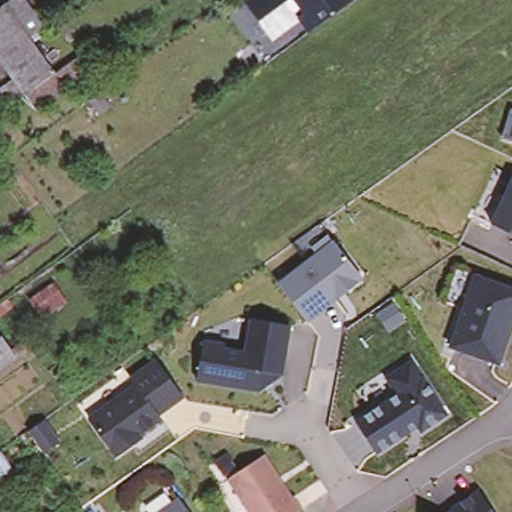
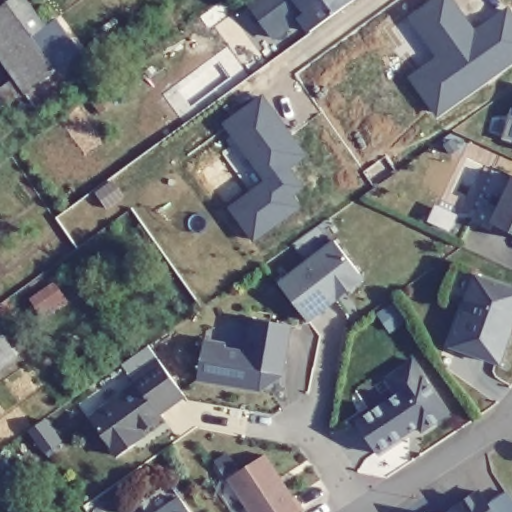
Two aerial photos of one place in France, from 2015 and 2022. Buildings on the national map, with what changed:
unchanged [(21,93),(0,64),(0,7),(0,3),(4,0),(15,0),(35,29),(23,39),(48,73),(21,93)]
unchanged [(310,29),(301,16),(275,35),(262,18),(255,9),(250,0),(350,0),(310,29)]
new [(474,31),(508,7),(512,12),(512,64),(437,117),(408,77),(437,57),(407,17),(432,0),(453,0),(474,31)]
unchanged [(48,73),(86,45),(98,60),(30,107),(21,93),(48,73)]
new [(309,156),(291,168),(305,187),(293,195),(302,207),(254,242),(226,207),(263,180),(222,123),(262,94),(309,156)]
unchanged [(512,189),(512,234),(494,226),(512,189)]
unchanged [(338,301),(310,323),(281,286),(308,263),(295,246),(323,226),(336,242),(362,277),(362,283),(351,292),(339,302),(338,301)]
unchanged [(512,286),(512,319),(508,328),(497,362),(447,343),(472,273),(512,286)]
unchanged [(202,343),(223,347),(222,352),(243,356),(250,321),(288,327),(279,377),(267,375),(262,380),(259,380),(257,392),(195,381),(202,343)]
unchanged [(15,358),(0,369),(0,337),(15,358)]
unchanged [(132,441),(115,453),(87,416),(133,381),(128,375),(155,356),(182,392),(157,411),(160,415),(137,432),(140,435),(132,441)]
unchanged [(353,424),(395,397),(383,381),(410,363),(445,416),(419,433),(415,428),(373,456),(353,424)]
unchanged [(295,500),(297,498),(306,511),(304,512),(251,512),(230,481),(266,457),(295,500)]
unchanged [(449,512),(457,507),(455,506),(481,488),(497,512),(449,512)]
unchanged [(191,512),(165,512),(182,500),(191,512)]

